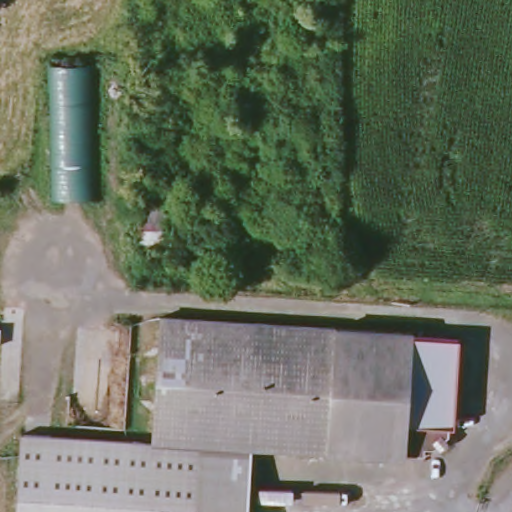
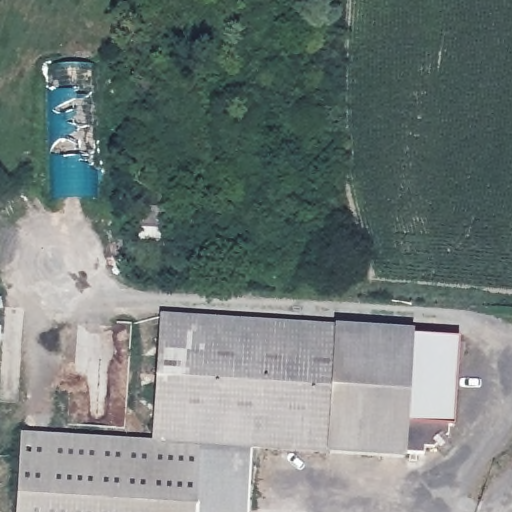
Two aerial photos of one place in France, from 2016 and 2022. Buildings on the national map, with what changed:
unchanged [(94,64),(97,197),(52,197),(47,65),(94,64)]
unchanged [(137,247),(138,207),(165,208),(164,248),(137,247)]
unchanged [(362,233),(360,255),(338,254),(340,231),(362,233)]
unchanged [(160,321),(337,334),(329,459),(252,453),(153,446),(160,321)]
unchanged [(413,339),(413,342),(405,460),(405,464),(329,459),(337,334),(413,339)]
unchanged [(460,346),(454,433),(450,433),(449,442),(445,445),(448,449),(441,456),(438,452),(435,455),(425,454),(424,461),(405,460),(413,342),(460,346)]
unchanged [(16,512),(22,435),(153,446),(252,453),(248,512),(16,512)]

